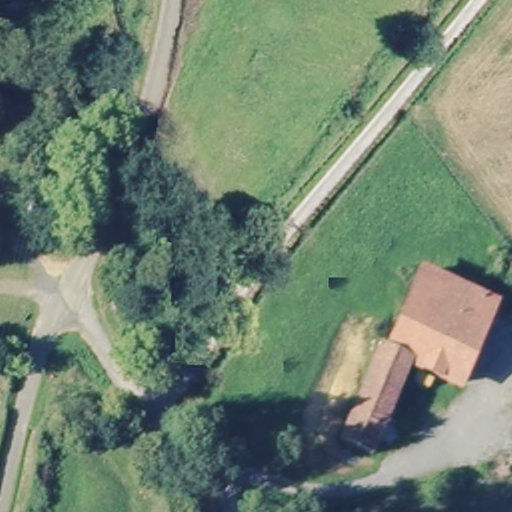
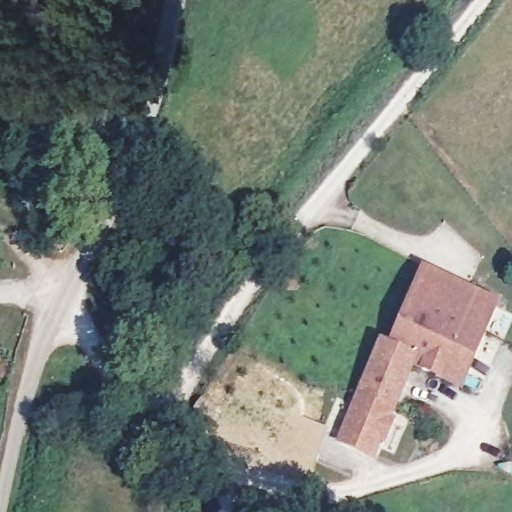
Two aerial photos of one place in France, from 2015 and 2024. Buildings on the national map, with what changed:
unchanged [(462,387),(395,358),(428,287),(490,315),(462,387)]
unchanged [(455,405),(411,385),(377,368),(384,353),(395,358),(462,387),(455,405)]
unchanged [(411,385),(374,460),(342,443),(377,368),(411,385)]

